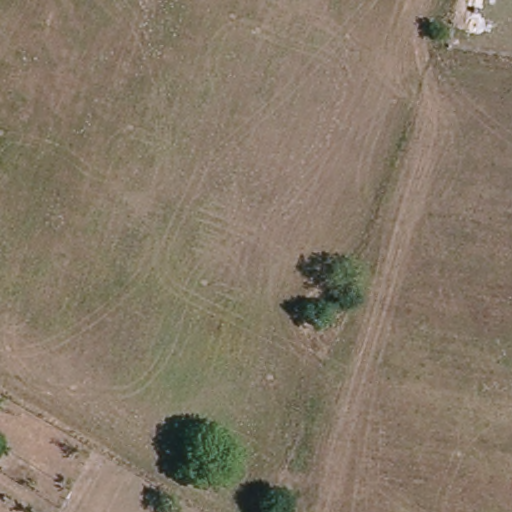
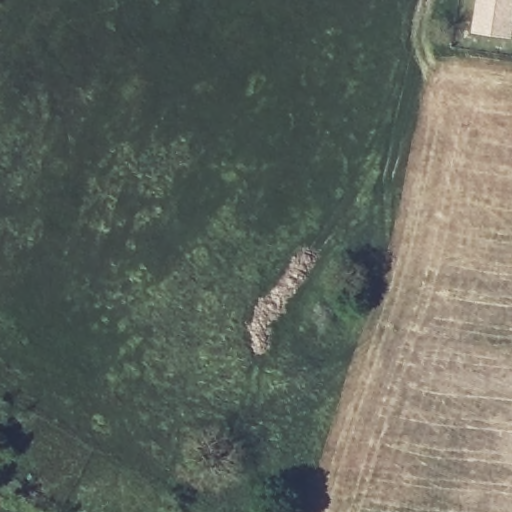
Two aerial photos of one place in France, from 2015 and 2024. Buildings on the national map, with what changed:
new [(512,32),(511,38),(470,32),(474,0),(512,0),(512,32)]

